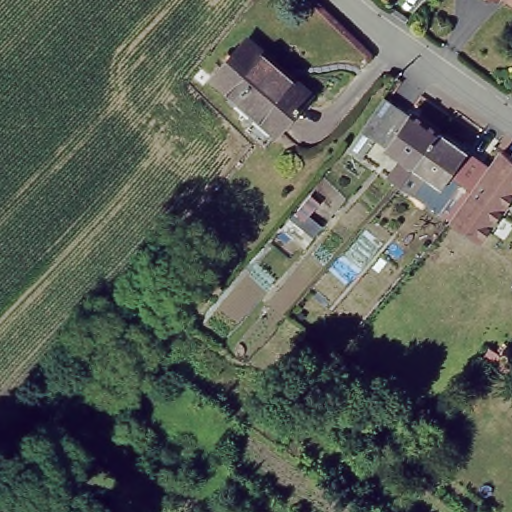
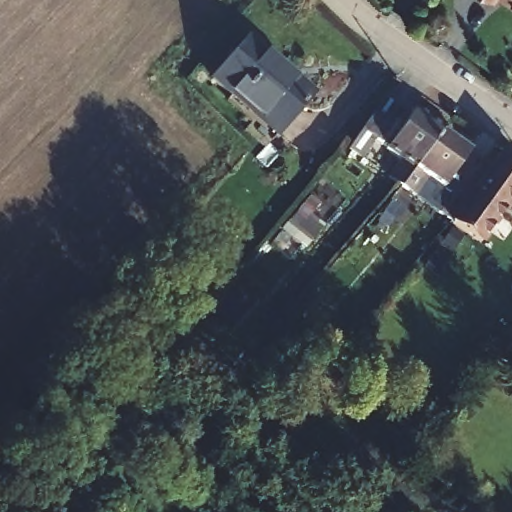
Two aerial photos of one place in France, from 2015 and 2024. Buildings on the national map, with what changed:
unchanged [(495,0),(497,0),(497,1),(495,0)]
unchanged [(512,0),(512,4),(506,0),(512,0)]
unchanged [(273,135),(208,80),(242,39),(307,93),(273,135)]
unchanged [(367,123),(386,94),(412,112),(385,149),(373,140),(360,160),(349,151),(367,123)]
unchanged [(412,112),(442,133),(402,189),(390,180),(402,161),(385,149),(412,112)]
unchanged [(467,151),(441,187),(428,179),(415,197),(402,189),(442,133),(467,151)]
unchanged [(441,187),(467,151),(491,169),(502,153),(512,160),(512,197),(480,242),(478,241),(452,224),(443,217),(457,198),(441,187)]

